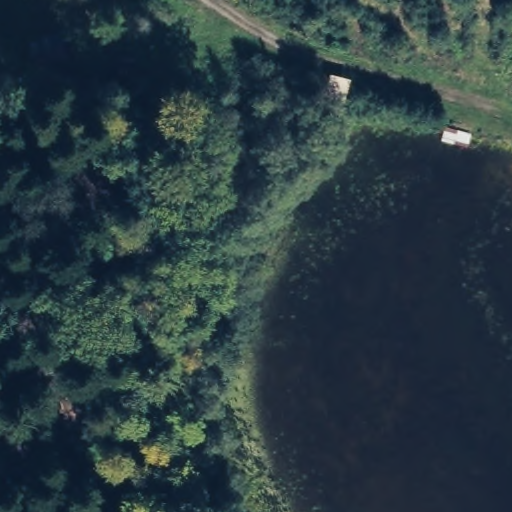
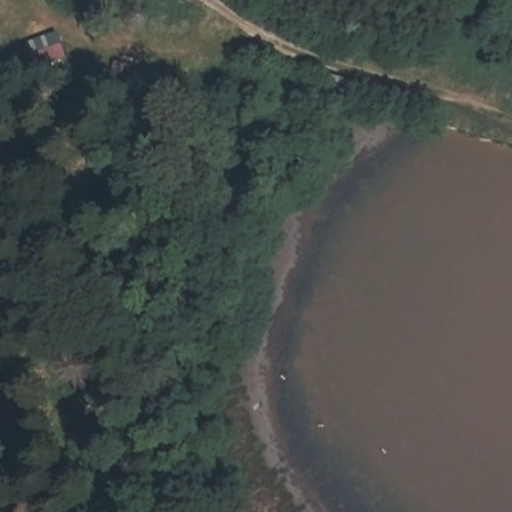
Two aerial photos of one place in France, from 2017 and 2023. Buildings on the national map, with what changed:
unchanged [(62,70),(41,80),(20,32),(43,23),(62,70)]

